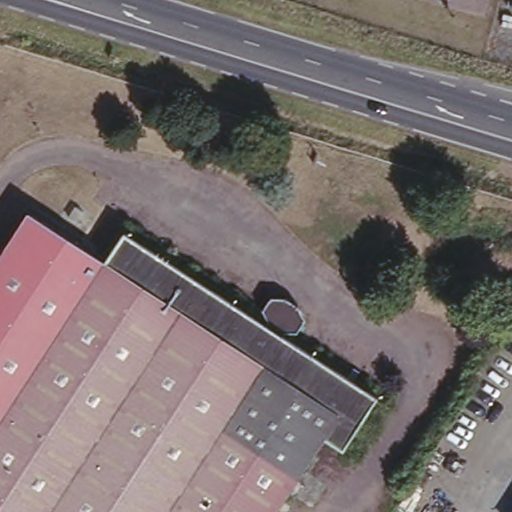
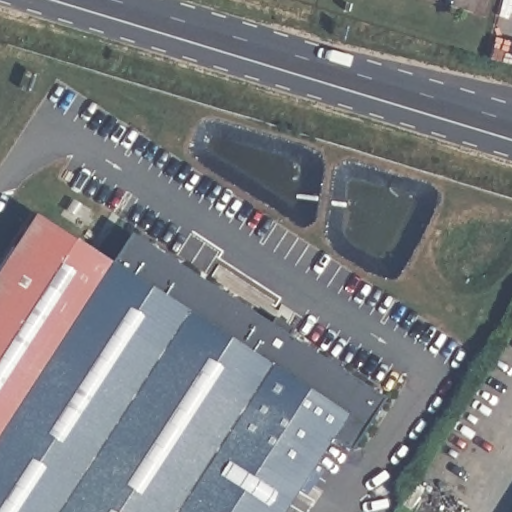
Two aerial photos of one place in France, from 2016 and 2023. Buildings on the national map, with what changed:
unchanged [(104,259),(120,233),(261,324),(263,320),(258,308),(265,296),(280,299),(295,307),(300,320),(292,333),(280,329),(276,334),(373,396),(341,448),(324,436),(276,512),(0,512),(0,258),(30,211),(104,259)]

